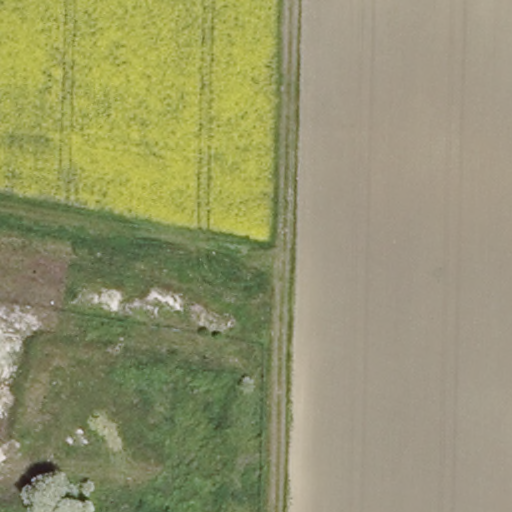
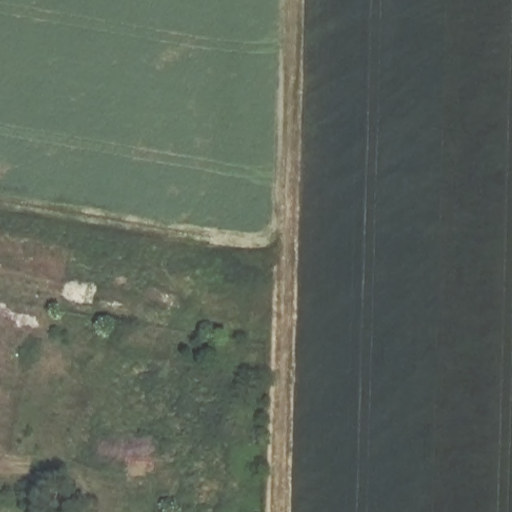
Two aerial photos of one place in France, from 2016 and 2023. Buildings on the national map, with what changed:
[]

